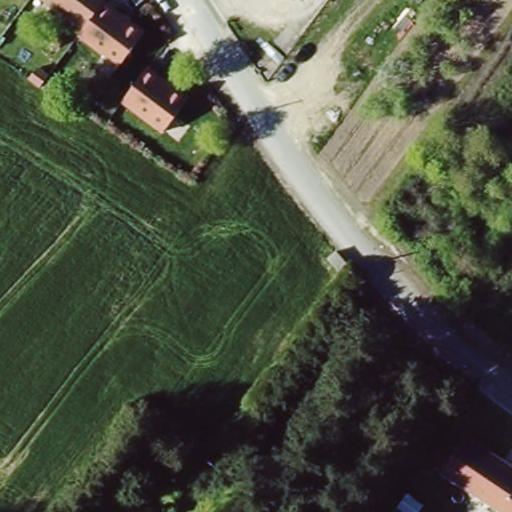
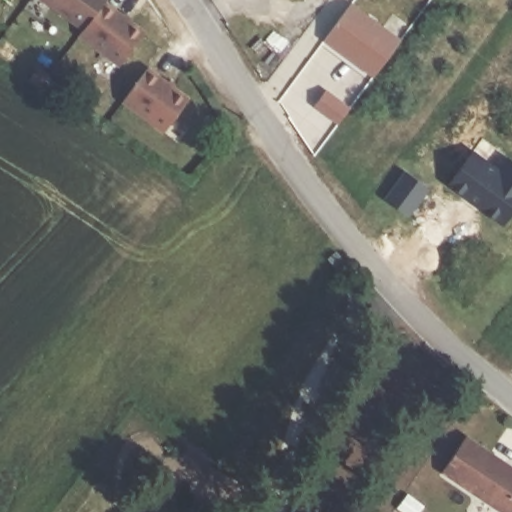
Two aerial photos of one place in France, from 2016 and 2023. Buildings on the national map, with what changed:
unchanged [(77,34),(81,29),(44,0),(104,0),(103,0),(145,33),(117,66),(77,34)]
new [(377,77),(327,41),(353,3),(404,38),(377,77)]
unchanged [(121,101),(147,67),(188,98),(162,132),(121,101)]
new [(475,149),(501,168),(510,155),(512,157),(512,215),(505,224),(486,210),(487,208),(478,201),(477,203),(450,183),(475,149)]
new [(335,252),(347,266),(340,273),(327,259),(335,252)]
unchanged [(512,466),(512,512),(498,512),(441,474),(467,435),(512,466)]

